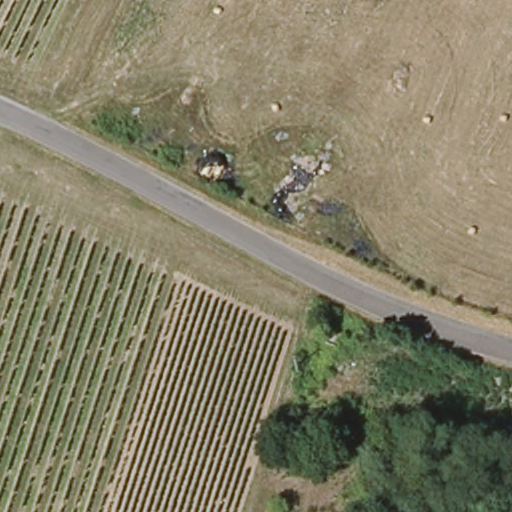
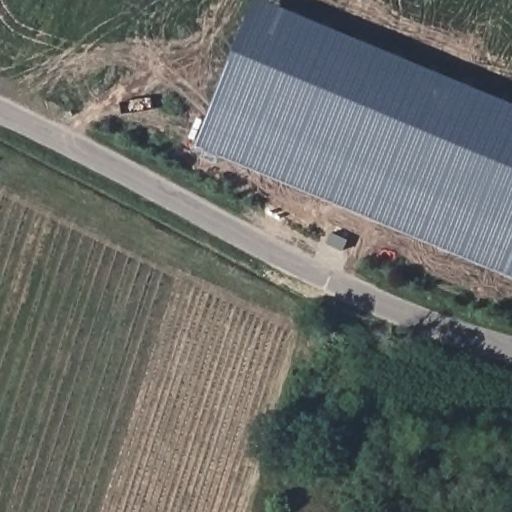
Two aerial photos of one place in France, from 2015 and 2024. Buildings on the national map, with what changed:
new [(259,0),(266,0),(512,102),(512,276),(198,146),(259,0)]
unchanged [(338,327),(335,344),(323,340),(326,325),(338,327)]

